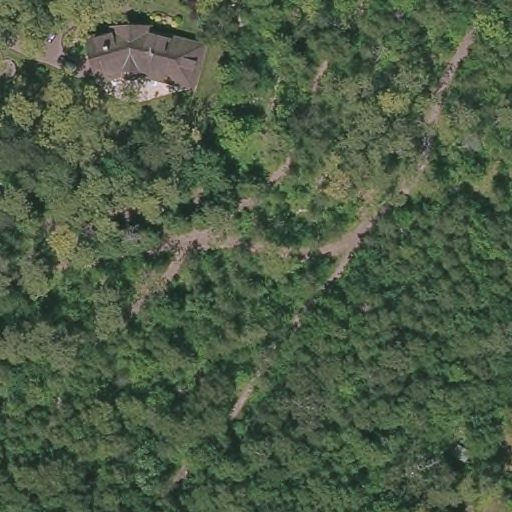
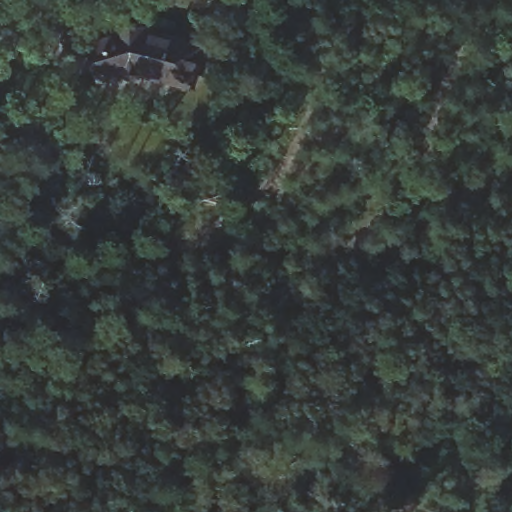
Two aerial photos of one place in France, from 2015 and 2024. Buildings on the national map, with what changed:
unchanged [(185,82),(137,68),(129,70),(124,64),(97,73),(84,33),(112,23),(115,17),(120,17),(122,25),(123,17),(142,19),(140,27),(197,40),(185,82)]

